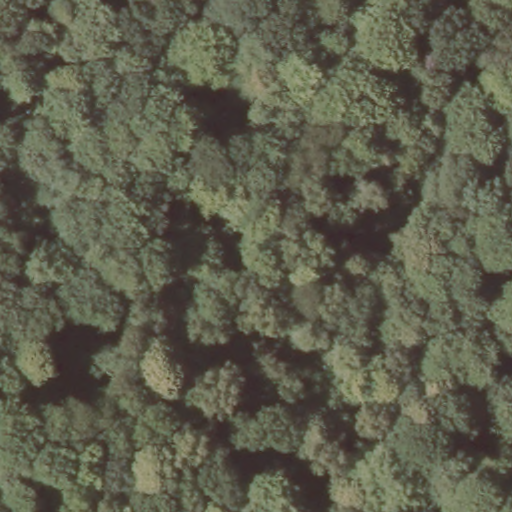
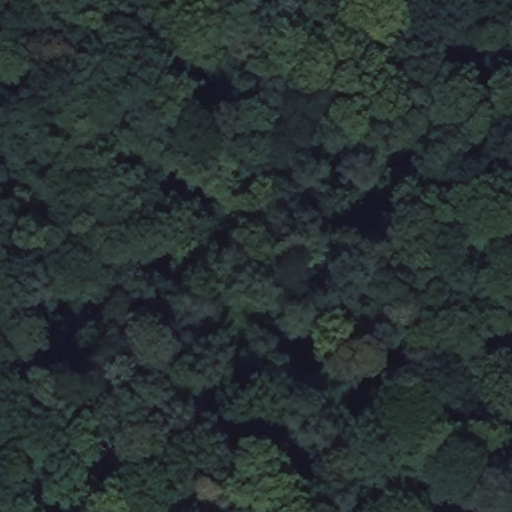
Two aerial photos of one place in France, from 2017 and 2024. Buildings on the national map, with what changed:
unchanged [(41,199),(22,200),(21,185),(41,184),(41,199)]

